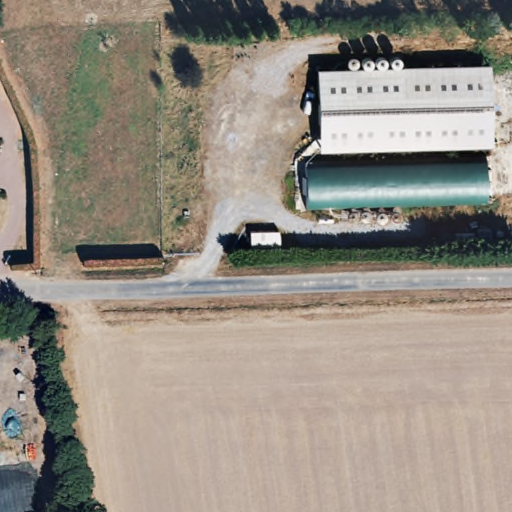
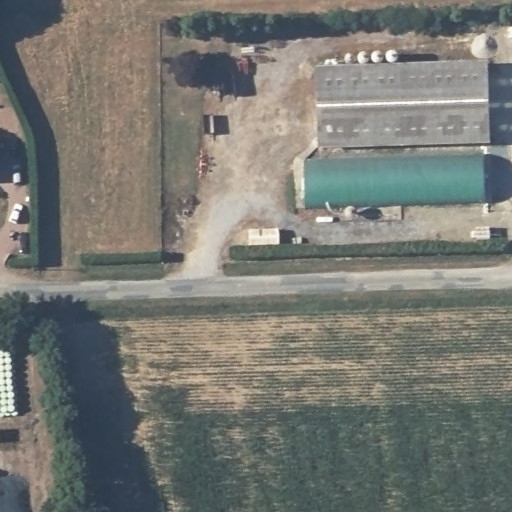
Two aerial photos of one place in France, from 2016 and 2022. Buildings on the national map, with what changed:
unchanged [(320,151),(317,68),(348,67),(347,56),(398,54),(399,64),(490,62),(491,144),(320,151)]
unchanged [(479,159),(480,203),(301,207),(300,163),(479,159)]

